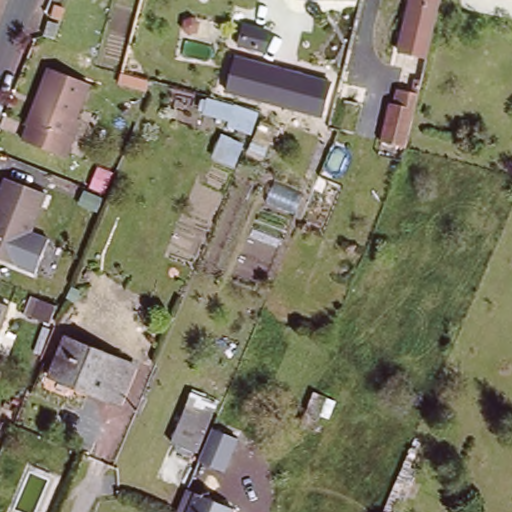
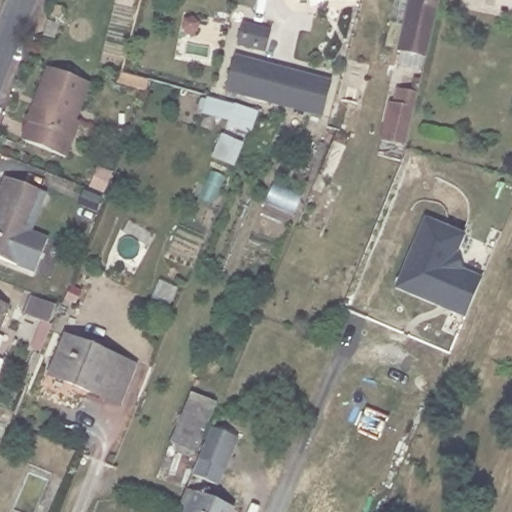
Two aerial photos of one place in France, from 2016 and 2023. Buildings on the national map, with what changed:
unchanged [(410,6),(396,5),(398,0),(421,0),(420,6),(410,6)]
unchanged [(421,0),(434,0),(420,60),(397,54),(410,6),(420,6),(421,0)]
unchanged [(509,0),(512,0),(512,1),(509,0)]
unchanged [(266,10),(261,30),(246,26),(252,5),(266,10)]
unchanged [(47,25),(56,28),(51,40),(43,36),(47,25)]
unchanged [(337,91),(327,124),(232,94),(242,62),(337,91)]
unchanged [(76,139),(70,156),(26,139),(32,124),(30,124),(52,69),(91,85),(77,120),(83,122),(76,139)]
unchanged [(356,115),(384,122),(390,99),(401,101),(405,87),(411,89),(413,81),(419,83),(404,144),(380,138),(353,130),(356,115)]
unchanged [(0,215),(15,179),(54,194),(25,266),(0,256),(0,215)]
new [(425,221),(463,237),(456,256),(463,274),(481,281),(465,320),(395,290),(425,221)]
unchanged [(0,354),(0,301),(18,309),(0,354)]
unchanged [(75,347),(143,376),(128,414),(58,385),(75,347)]
unchanged [(219,405),(211,430),(238,441),(225,471),(197,460),(199,455),(170,443),(189,393),(219,405)]
demolished [(388,465),(412,476),(396,512),(369,512),(388,465)]
demolished [(230,485),(223,502),(196,491),(203,475),(230,485)]
unchanged [(192,500),(222,512),(188,512),(192,500)]

